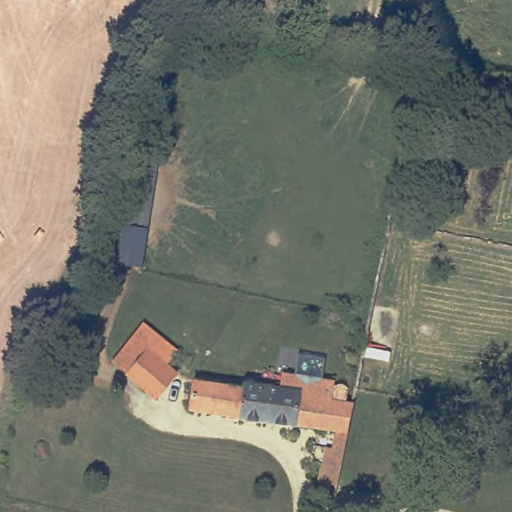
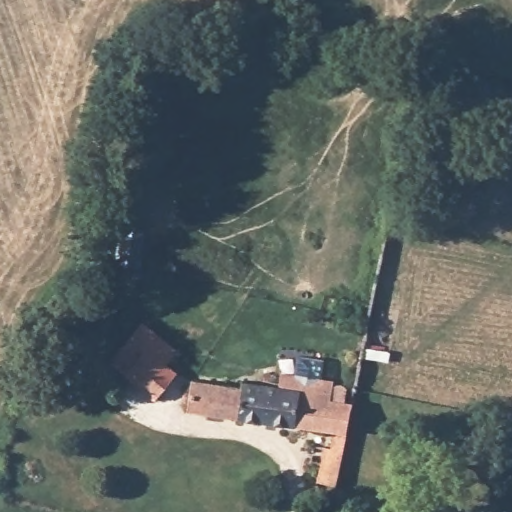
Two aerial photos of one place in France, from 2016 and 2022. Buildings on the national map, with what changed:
unchanged [(111,362),(143,325),(175,353),(166,366),(176,374),(156,399),(111,362)]
unchanged [(335,486),(318,483),(325,452),(331,453),(335,432),(189,411),(194,381),(244,389),(244,384),(279,389),(281,374),(310,379),(333,383),(333,387),(335,387),(339,386),(343,386),(347,389),(345,402),(351,403),(342,451),(337,477),(335,486)]

